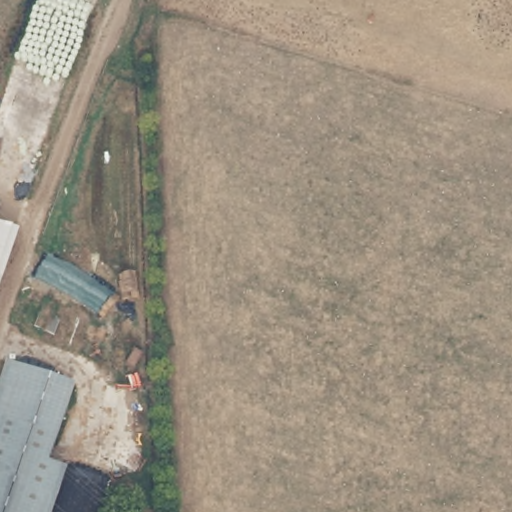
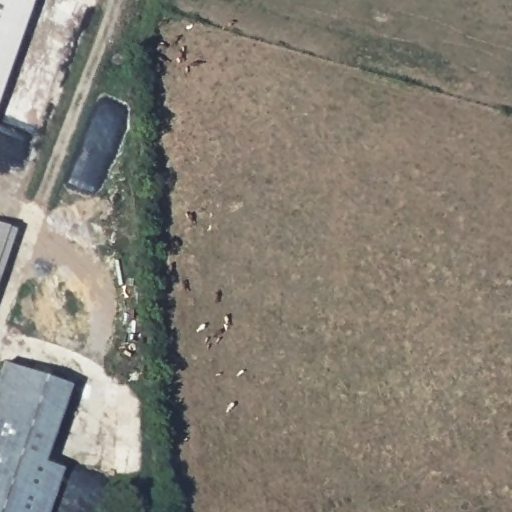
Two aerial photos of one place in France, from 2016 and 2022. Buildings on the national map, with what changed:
new [(0,104),(0,0),(37,0),(0,104)]
unchanged [(0,223),(18,228),(7,263),(0,260),(0,223)]
unchanged [(0,296),(0,260),(11,264),(0,296)]
unchanged [(79,380),(55,456),(67,460),(52,512),(0,512),(0,398),(13,358),(79,380)]

